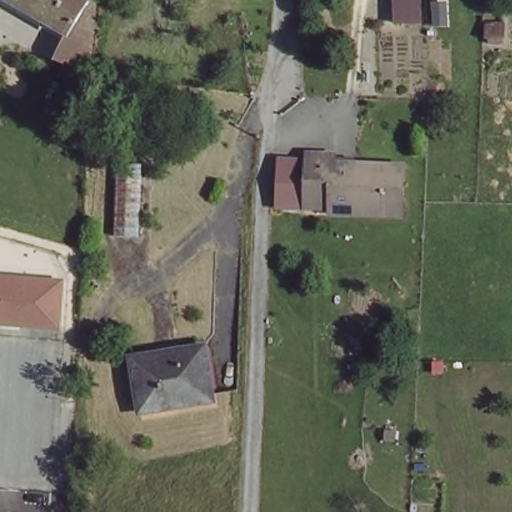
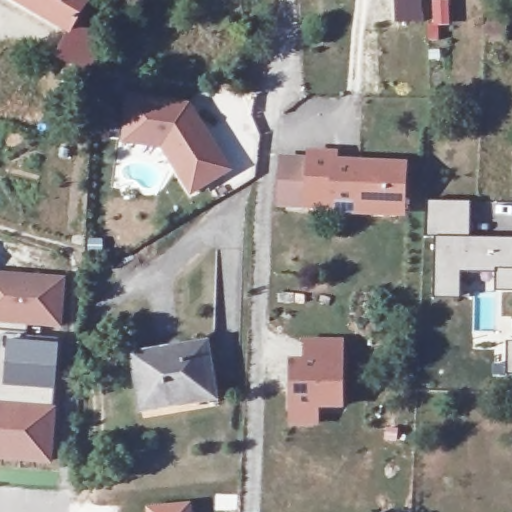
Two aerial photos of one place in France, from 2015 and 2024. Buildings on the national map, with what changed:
unchanged [(90,80),(65,76),(69,41),(0,0),(73,0),(93,11),(90,80)]
unchanged [(399,19),(398,0),(423,0),(425,18),(399,19)]
new [(188,198),(160,150),(121,144),(126,95),(190,103),(232,172),(188,198)]
unchanged [(292,206),(292,159),(320,159),(320,151),(345,151),(345,161),(412,163),(412,211),(346,208),(318,207),(292,206)]
demolished [(142,170),(140,243),(115,241),(117,169),(142,170)]
new [(495,292),(495,273),(460,274),(460,298),(433,299),(435,237),(425,238),(427,203),(470,204),(468,239),(512,239),(512,292),(495,292)]
unchanged [(0,324),(0,274),(67,279),(64,329),(0,324)]
new [(56,408),(51,464),(0,460),(0,332),(27,333),(26,338),(60,340),(51,408),(56,408)]
unchanged [(168,405),(170,411),(144,415),(133,359),(205,345),(214,397),(168,405)]
new [(292,365),(306,365),(307,345),(342,345),(342,365),(342,409),(317,409),(317,426),(292,426),(292,409),(292,365)]
new [(187,507),(187,512),(141,512),(140,507),(187,507)]

